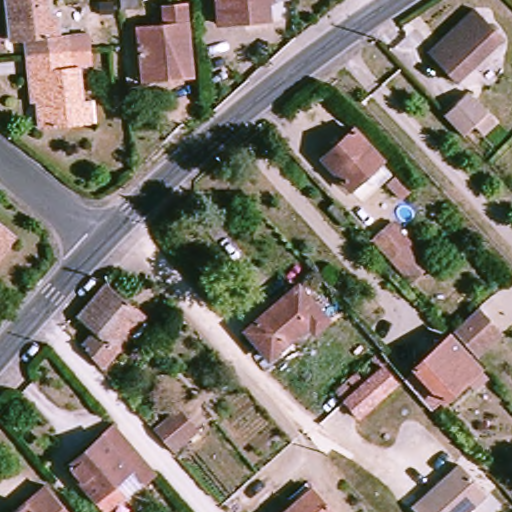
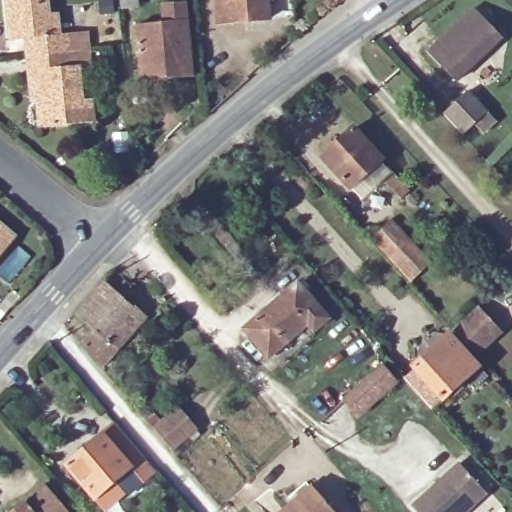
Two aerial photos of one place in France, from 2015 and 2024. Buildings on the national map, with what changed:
unchanged [(25,38),(15,39),(13,24),(5,24),(3,0),(43,0),(43,16),(58,15),(59,36),(71,36),(72,48),(25,52),(25,38)]
unchanged [(120,0),(136,0),(137,11),(121,11),(120,0)]
unchanged [(266,4),(268,23),(217,27),(214,0),(271,0),(271,3),(266,4)]
unchanged [(185,6),(192,80),(141,86),(135,30),(162,27),(161,8),(185,6)]
unchanged [(455,86),(427,57),(473,12),(501,42),(455,86)]
unchanged [(72,68),(78,67),(80,97),(87,97),(90,121),(39,124),(35,71),(26,72),(25,52),(72,48),(72,68)]
unchanged [(473,140),(455,121),(453,119),(477,96),(497,116),(473,140)]
unchanged [(351,127),(381,159),(349,187),(320,156),(351,127)]
unchanged [(407,190),(399,197),(385,183),(392,176),(407,190)]
unchanged [(12,237),(0,251),(0,226),(12,237)]
unchanged [(384,231),(402,250),(413,242),(426,257),(416,265),(410,257),(399,268),(374,241),(384,231)]
unchanged [(82,346),(94,332),(79,320),(110,285),(140,311),(149,319),(133,335),(101,367),(82,346)]
unchanged [(325,316),(272,362),(247,334),(299,289),(325,316)]
unchanged [(451,331),(477,307),(502,332),(475,357),(451,331)]
unchanged [(404,376),(413,368),(411,366),(448,335),(476,366),(432,406),(404,376)]
unchanged [(382,362),(397,380),(359,413),(345,397),(382,362)]
unchanged [(427,404),(415,413),(399,396),(410,386),(427,404)]
unchanged [(150,426),(174,406),(196,430),(171,452),(150,426)]
unchanged [(154,476),(142,487),(130,472),(111,487),(121,498),(104,512),(100,512),(65,470),(114,428),(154,476)]
unchanged [(410,506),(458,461),(488,492),(468,512),(416,512),(410,506)]
unchanged [(43,483),(68,512),(11,512),(43,483)]
unchanged [(312,487),(333,512),(282,512),(312,487)]

